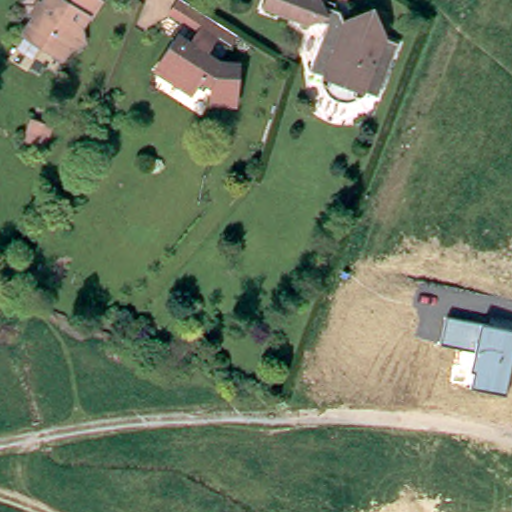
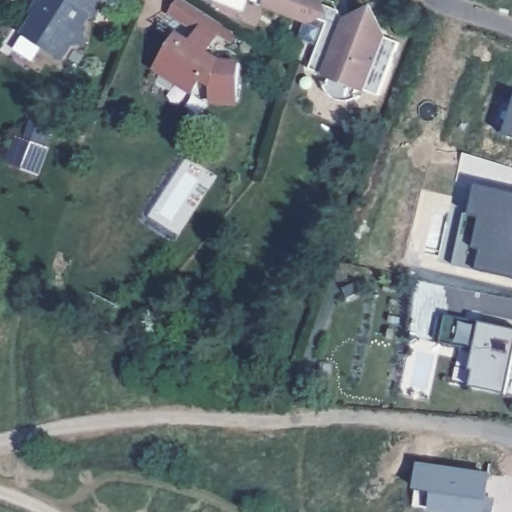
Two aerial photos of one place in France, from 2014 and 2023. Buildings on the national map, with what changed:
unchanged [(22,27),(31,11),(27,8),(32,0),(34,0),(37,2),(38,0),(94,0),(87,13),(84,11),(75,25),(80,37),(79,38),(67,42),(59,56),(37,43),(19,33),(22,27)]
unchanged [(267,0),(318,0),(321,6),(338,12),(343,24),(365,14),(373,7),(374,18),(386,40),(398,45),(376,98),(357,90),(354,95),(360,98),(357,99),(351,102),(346,102),(339,102),(334,100),(328,97),(323,92),(321,87),(319,82),(326,84),(328,79),(309,71),(313,59),(304,55),(310,37),(306,25),(264,9),(267,0)]
unchanged [(213,64),(233,65),(230,105),(205,103),(206,88),(197,81),(188,94),(151,70),(173,38),(184,46),(190,37),(163,17),(174,1),(187,9),(219,29),(233,38),(227,46),(213,38),(202,56),(213,64)]
new [(512,111),(512,137),(504,135),(512,111)]
new [(32,119),(45,125),(37,145),(23,140),(32,119)]
new [(18,140),(45,150),(35,175),(9,165),(18,140)]
new [(476,187),(512,194),(512,279),(460,268),(476,187)]
unchanged [(512,364),(506,393),(471,386),(474,372),(469,371),(474,350),(441,344),(447,314),(512,330),(512,364)]
new [(493,506),(492,512),(431,512),(434,494),(416,492),(419,467),(437,470),(488,477),(484,505),(493,506)]

